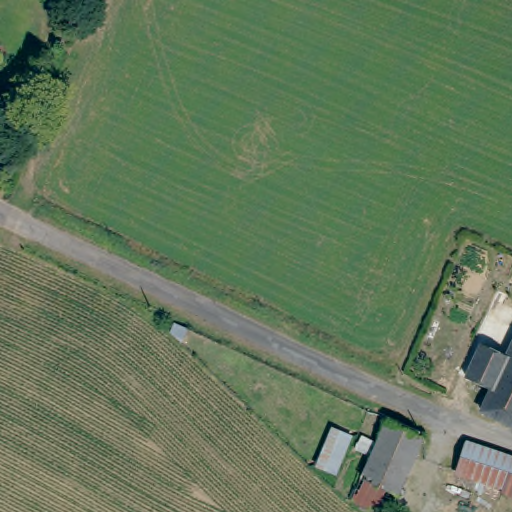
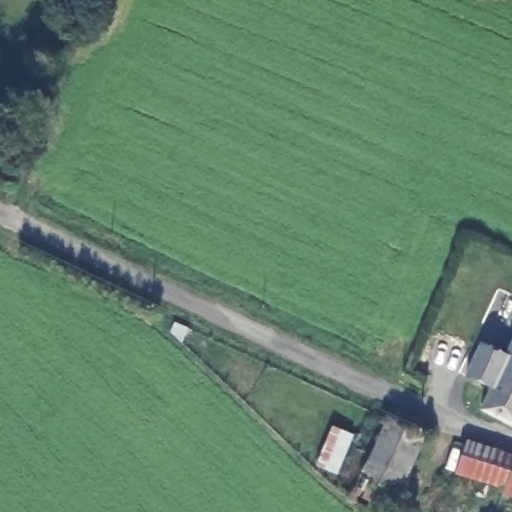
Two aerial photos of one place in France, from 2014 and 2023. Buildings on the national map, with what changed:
unchanged [(495,386),(471,375),(484,344),(512,355),(512,421),(486,408),(495,386)]
unchanged [(420,439),(386,511),(351,495),(384,422),(420,439)]
unchanged [(500,492),(500,490),(457,475),(466,445),(512,460),(512,496),(500,492)]

